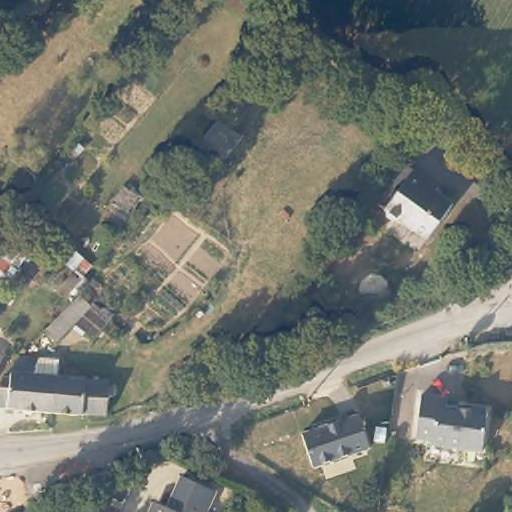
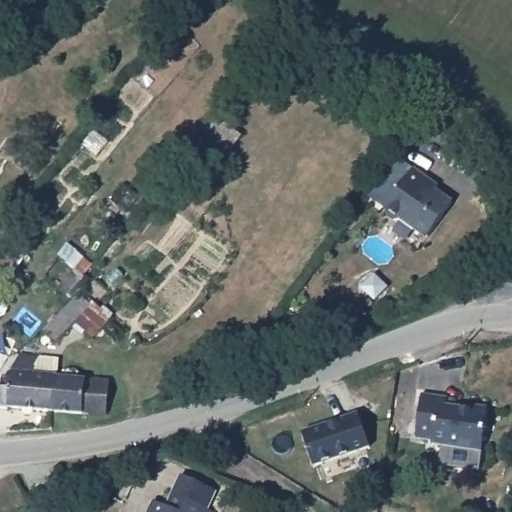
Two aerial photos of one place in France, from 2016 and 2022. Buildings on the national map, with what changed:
unchanged [(199,141),(220,116),(244,135),(225,159),(199,141)]
unchanged [(434,186),(431,190),(448,203),(423,237),(413,229),(412,230),(396,219),(390,220),(385,216),(384,210),(381,209),(409,169),(423,179),(434,186)]
unchanged [(7,274),(0,270),(0,262),(18,236),(28,243),(7,274)]
unchanged [(94,301),(59,337),(48,326),(83,291),(94,301)]
unchanged [(0,384),(3,374),(11,375),(23,350),(44,353),(42,372),(54,373),(50,409),(0,405),(0,384)]
unchanged [(108,378),(105,413),(50,409),(54,373),(108,378)]
unchanged [(434,440),(434,437),(417,433),(426,391),(452,396),(451,405),(474,410),(476,406),(478,406),(492,409),(483,451),(464,447),(434,440)]
unchanged [(360,416),(369,449),(313,465),(304,433),(360,416)]

